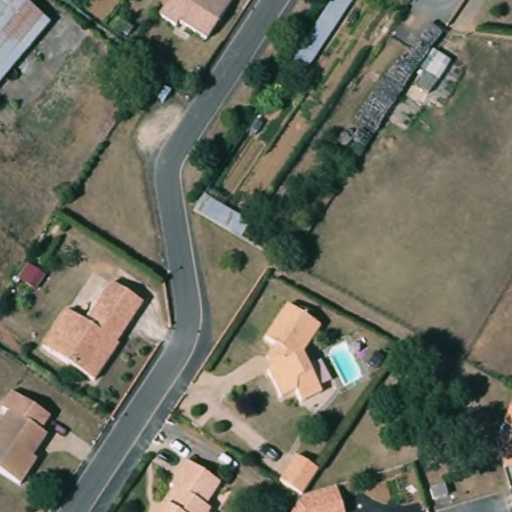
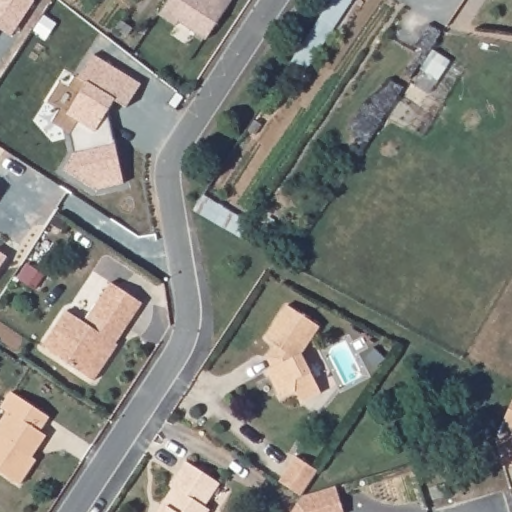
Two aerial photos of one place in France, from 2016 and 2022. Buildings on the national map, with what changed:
demolished [(0,10),(0,0),(7,0),(0,10)]
demolished [(47,21),(0,76),(0,10),(7,0),(22,0),(47,21)]
unchanged [(203,40),(175,24),(173,27),(154,15),(164,0),(229,0),(203,40)]
unchanged [(129,26),(124,34),(112,26),(118,18),(129,26)]
new [(141,83),(127,106),(115,99),(108,111),(123,183),(95,189),(64,171),(74,153),(70,133),(77,120),(67,114),(86,83),(78,78),(93,53),(141,83)]
new [(8,257),(0,269),(0,252),(8,257)]
unchanged [(65,312),(82,323),(109,284),(139,305),(109,350),(111,352),(90,383),(41,350),(65,312)]
unchanged [(270,345),(262,340),(282,306),(315,328),(299,356),(317,396),(296,405),(292,396),(278,403),(264,376),(268,374),(262,360),(270,345)]
unchanged [(4,413),(0,410),(0,405),(7,394),(43,418),(34,432),(41,438),(30,457),(32,459),(17,485),(0,474),(0,420),(4,413)]
unchanged [(512,437),(512,468),(510,468),(502,440),(512,437)]
unchanged [(280,479),(297,454),(319,469),(307,487),(341,476),(349,506),(330,512),(291,512),(302,494),(280,479)]
unchanged [(183,465),(216,487),(201,511),(202,512),(156,512),(158,508),(169,491),(167,489),(183,465)]
unchanged [(426,489),(439,485),(442,494),(429,500),(426,489)]

